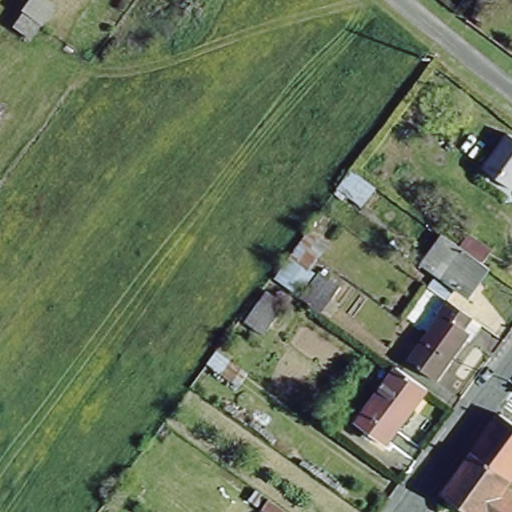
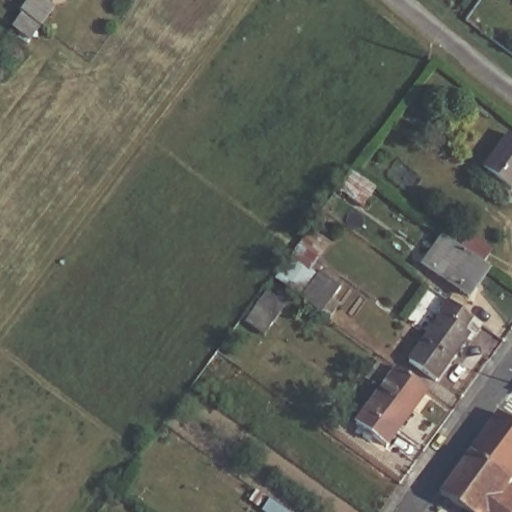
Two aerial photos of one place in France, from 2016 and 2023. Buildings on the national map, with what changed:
unchanged [(510,135),(512,137),(512,190),(512,191),(482,170),(510,135)]
unchanged [(339,220),(327,237),(331,239),(313,266),(341,285),(322,311),(274,277),(322,211),(339,220)]
unchanged [(471,233),(493,250),(484,262),(462,244),(471,233)]
unchanged [(486,266),(464,297),(431,273),(454,242),(486,266)]
unchanged [(471,320),(460,334),(469,341),(436,385),(405,363),(438,318),(434,315),(444,301),(471,320)]
unchanged [(266,307),(276,314),(282,306),(291,312),(268,345),(249,331),(266,307)]
unchanged [(386,444),(355,420),(396,366),(427,389),(386,444)]
unchanged [(439,494),(497,412),(512,422),(512,480),(507,487),(512,490),(512,512),(464,512),(439,494)]
unchanged [(262,510),(256,506),(259,501),(274,512),(260,512),(262,510)]

